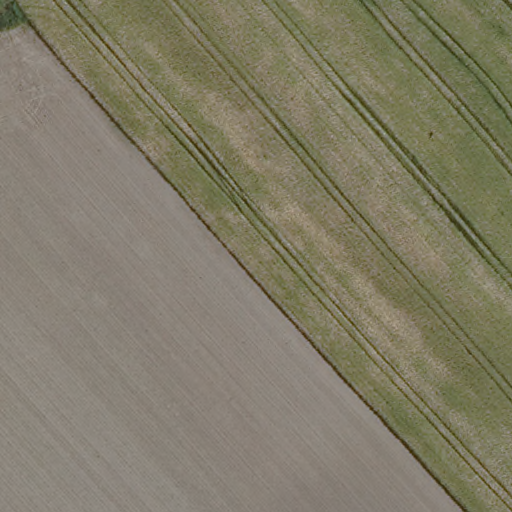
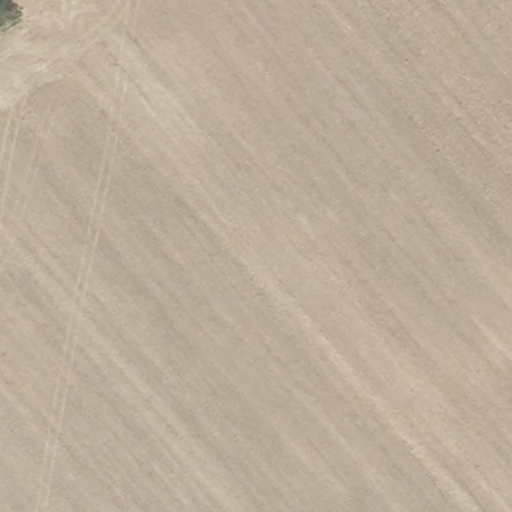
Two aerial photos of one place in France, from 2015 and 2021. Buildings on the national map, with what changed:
[]

